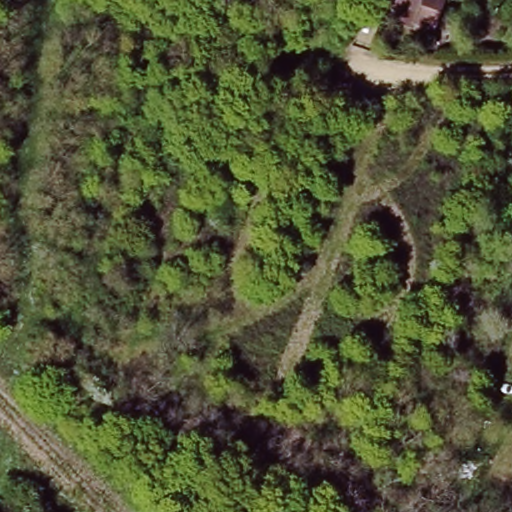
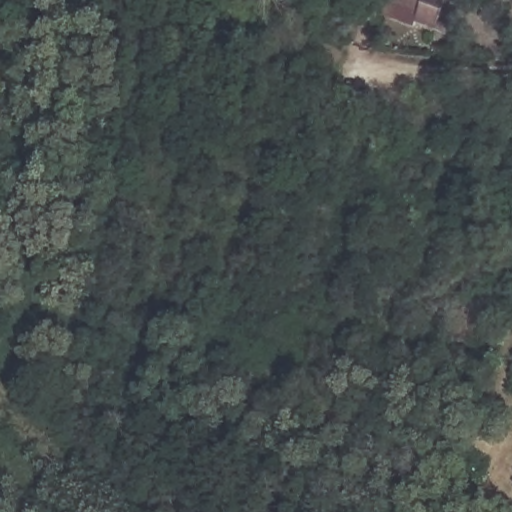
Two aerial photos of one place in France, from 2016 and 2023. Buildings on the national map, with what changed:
unchanged [(440,14),(409,3),(410,0),(445,0),(440,14)]

